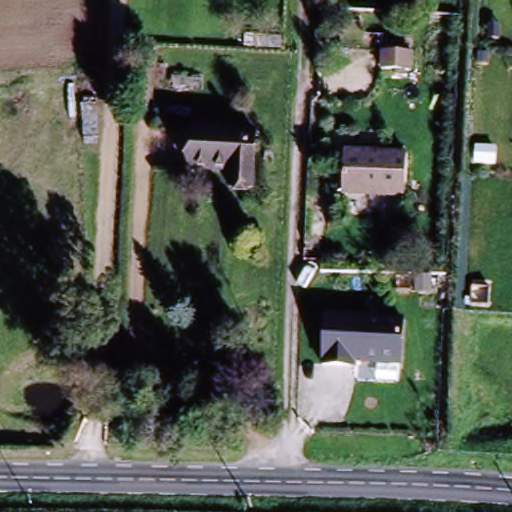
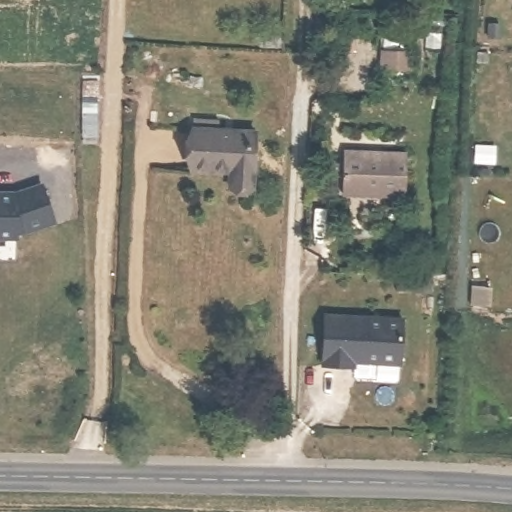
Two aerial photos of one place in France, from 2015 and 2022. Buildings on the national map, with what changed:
unchanged [(411,66),(381,66),(382,49),(411,49),(411,66)]
unchanged [(255,174),(233,173),(233,158),(195,156),(196,118),(257,120),(255,174)]
unchanged [(340,150),(403,153),(401,193),(338,190),(340,150)]
new [(9,196),(17,196),(43,187),(55,225),(24,235),(17,235),(17,241),(0,241),(0,195),(1,195),(9,196)]
unchanged [(404,319),(401,368),(356,366),(356,372),(320,369),(322,314),(404,319)]

